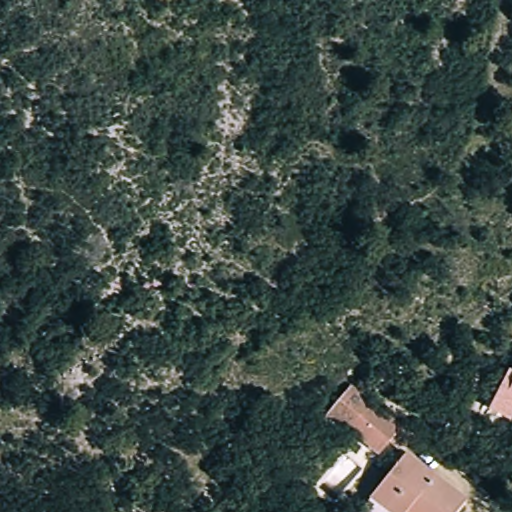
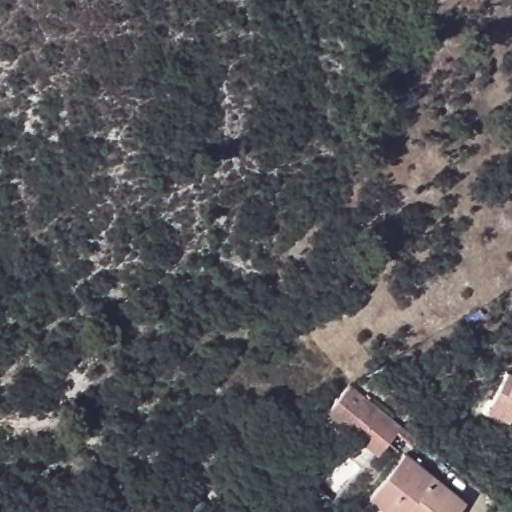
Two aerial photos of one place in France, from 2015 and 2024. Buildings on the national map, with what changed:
unchanged [(512,382),(512,394),(507,392),(512,382)]
unchanged [(401,425),(379,453),(343,425),(333,422),(327,417),(350,385),(401,425)]
unchanged [(405,453),(465,502),(457,512),(389,512),(370,497),(405,453)]

